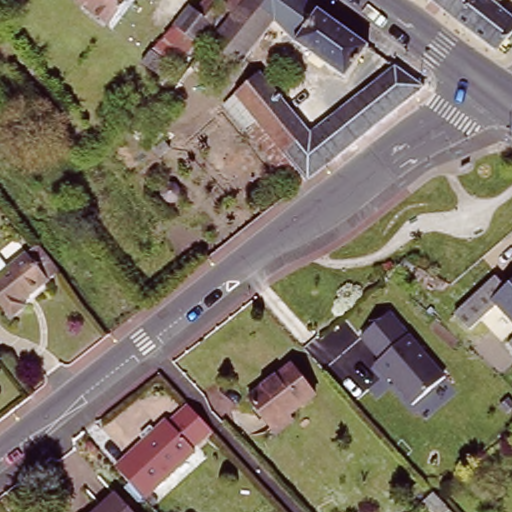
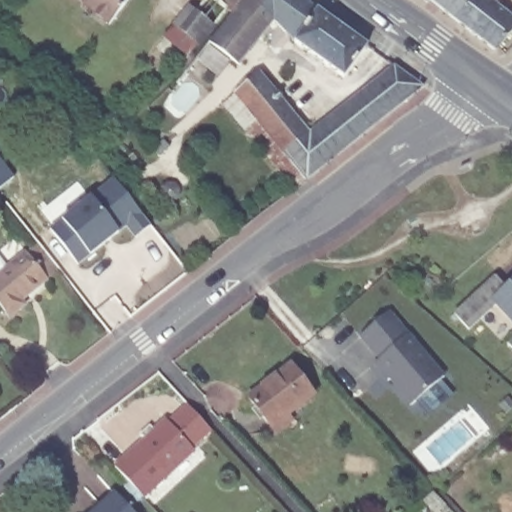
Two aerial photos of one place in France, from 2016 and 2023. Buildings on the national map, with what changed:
unchanged [(110,26),(76,0),(129,0),(110,26)]
unchanged [(206,0),(222,0),(224,2),(226,0),(243,0),(235,11),(232,9),(217,28),(215,27),(200,46),(198,44),(175,24),(191,6),(197,11),(206,0)]
unchanged [(243,0),(308,0),(330,16),(368,44),(344,76),(297,41),(277,20),(240,64),(213,40),(235,11),(243,0)]
unchanged [(494,9),(512,23),(512,32),(494,55),(478,42),(427,3),(425,5),(418,0),(501,0),(494,9)]
unchanged [(198,44),(177,67),(173,63),(161,76),(145,60),(175,24),(198,44)]
unchanged [(193,66),(207,79),(186,106),(172,94),(193,66)]
unchanged [(395,68),(397,70),(423,90),(390,116),(383,121),(362,95),(395,68)]
unchanged [(247,134),(227,109),(237,99),(236,97),(260,76),(285,104),(311,135),(333,162),(315,177),(307,183),(295,193),(247,134)]
unchanged [(360,96),(362,95),(383,121),(348,150),(333,162),(311,135),(340,112),(360,96)]
unchanged [(156,146),(160,152),(149,160),(145,154),(156,146)]
new [(137,239),(129,228),(120,232),(91,256),(92,257),(80,265),(53,229),(63,223),(62,220),(90,197),(115,178),(153,225),(137,239)]
unchanged [(51,280),(38,290),(13,308),(17,313),(0,325),(0,324),(0,274),(17,262),(29,252),(51,280)]
unchanged [(465,301),(493,275),(505,288),(512,281),(512,318),(497,302),(472,325),(467,330),(452,313),(455,310),(465,301)]
unchanged [(390,310),(444,378),(410,407),(359,339),(390,310)]
unchanged [(510,342),(512,340),(512,345),(510,342)]
unchanged [(0,364),(0,354),(5,361),(0,364)]
unchanged [(277,439),(270,431),(248,402),(291,368),(314,396),(280,423),(287,431),(277,439)]
unchanged [(172,425),(191,407),(215,433),(196,451),(198,453),(149,500),(120,470),(170,423),(172,425)]
unchanged [(140,512),(89,512),(116,487),(140,512)]

